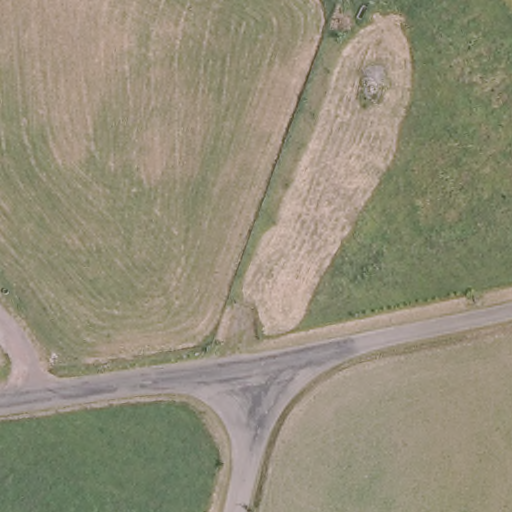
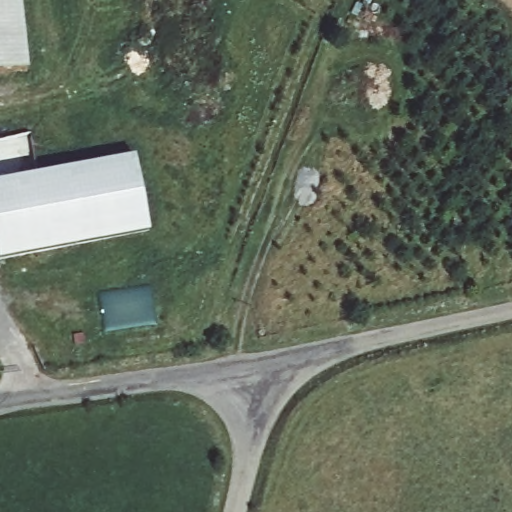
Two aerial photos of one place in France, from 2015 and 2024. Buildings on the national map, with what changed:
new [(28,69),(0,72),(0,0),(20,0),(28,69)]
new [(135,156),(150,233),(0,261),(0,182),(135,156)]

